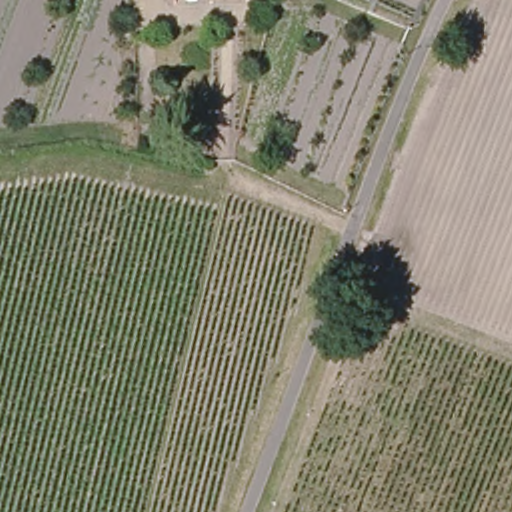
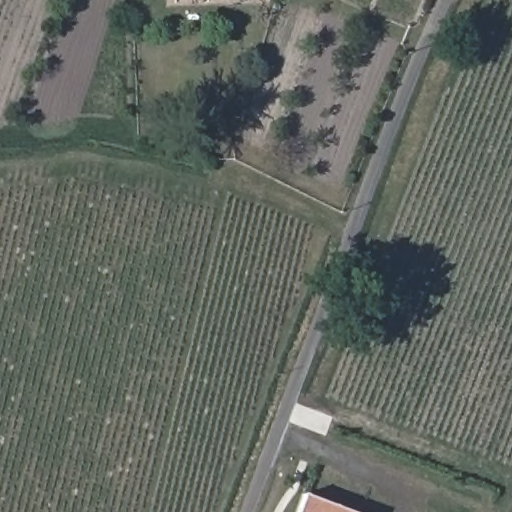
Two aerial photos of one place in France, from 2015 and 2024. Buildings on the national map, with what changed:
new [(302,512),(309,494),(355,512),(302,512)]

